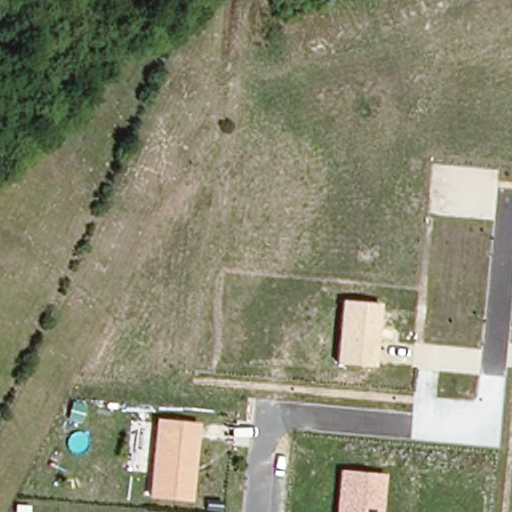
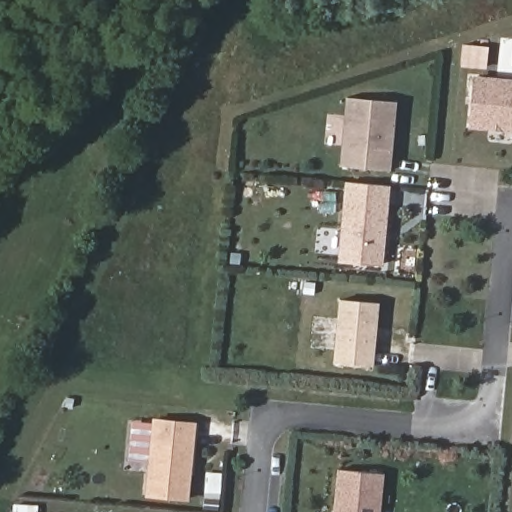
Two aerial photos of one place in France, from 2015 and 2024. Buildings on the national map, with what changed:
new [(512,79),(512,132),(469,129),(473,76),(512,79)]
new [(398,102),(391,171),(340,166),(346,97),(398,102)]
new [(344,182),(391,186),(384,265),(338,262),(344,182)]
unchanged [(374,368),(332,365),(338,301),(379,304),(374,368)]
unchanged [(154,420),(198,422),(192,501),(146,497),(154,420)]
unchanged [(381,512),(331,512),(336,469),(384,474),(381,512)]

